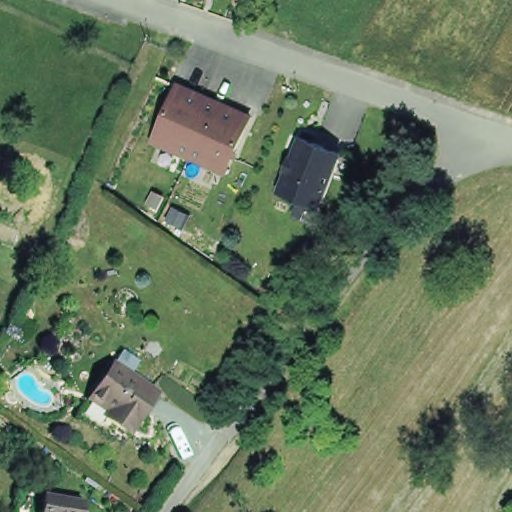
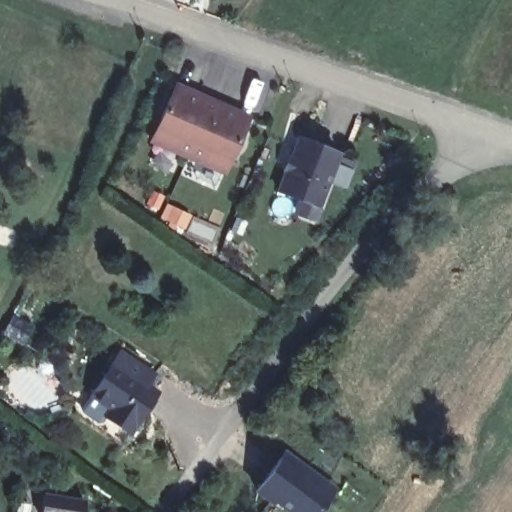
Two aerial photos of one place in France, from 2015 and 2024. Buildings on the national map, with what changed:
unchanged [(245,117),(222,172),(148,141),(172,86),(245,117)]
unchanged [(299,210),(305,196),(280,187),(288,166),(286,165),(290,154),(293,154),(302,133),(341,148),(320,202),(318,201),(313,215),(299,210)]
unchanged [(105,418),(108,413),(90,401),(92,397),(114,365),(157,393),(133,430),(130,434),(105,418)]
new [(335,486),(322,512),(282,512),(255,493),(282,450),(335,486)]
unchanged [(85,500),(83,512),(42,512),(45,493),(85,500)]

